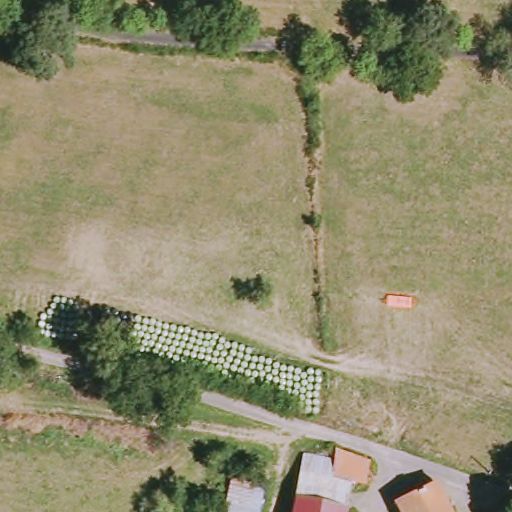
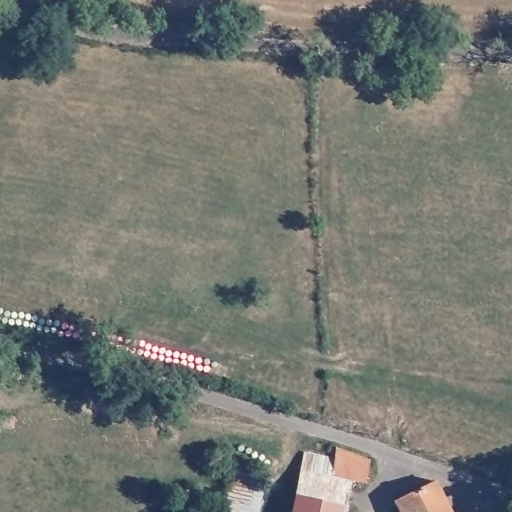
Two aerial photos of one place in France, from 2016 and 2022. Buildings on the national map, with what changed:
unchanged [(371,478),(334,473),(339,447),(374,459),(371,478)]
unchanged [(302,495),(307,471),(333,477),(357,483),(352,506),(302,495)]
unchanged [(228,512),(235,477),(269,482),(264,512),(228,512)]
unchanged [(439,483),(454,512),(403,512),(399,504),(439,483)]
unchanged [(352,506),(351,512),(299,512),(302,495),(352,506)]

